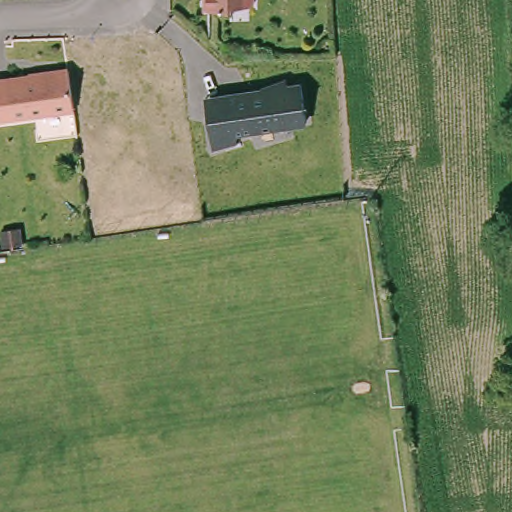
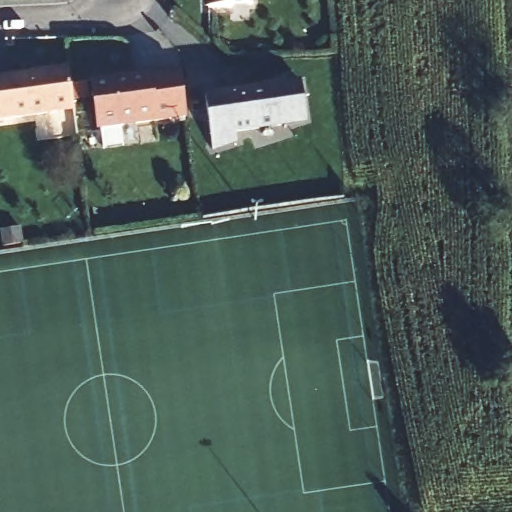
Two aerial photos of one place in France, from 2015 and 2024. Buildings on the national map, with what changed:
unchanged [(227,5),(227,8),(205,9),(205,6),(200,2),(200,0),(248,0),(249,4),(227,5)]
unchanged [(0,117),(0,76),(65,68),(70,108),(0,117)]
new [(179,68),(184,121),(98,127),(90,84),(179,68)]
unchanged [(297,124),(272,129),(272,126),(225,132),(227,142),(202,149),(198,96),(222,89),(222,84),(230,84),(234,87),(240,90),(242,84),(254,83),(253,80),(276,73),(277,80),(292,79),(297,124)]

